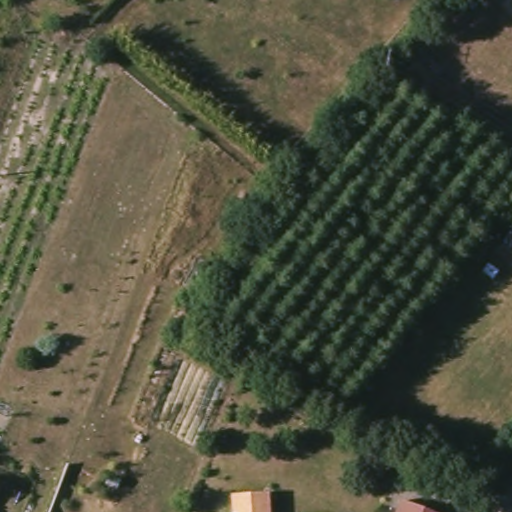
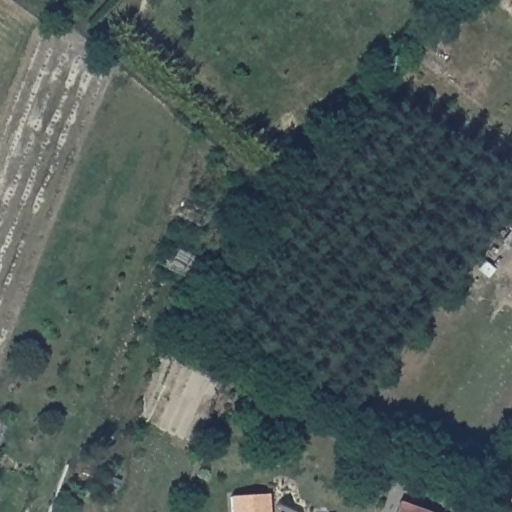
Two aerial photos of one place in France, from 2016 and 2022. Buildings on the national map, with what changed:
unchanged [(231,496),(271,494),(271,512),(231,512),(231,496)]
unchanged [(430,512),(395,512),(400,500),(430,512)]

